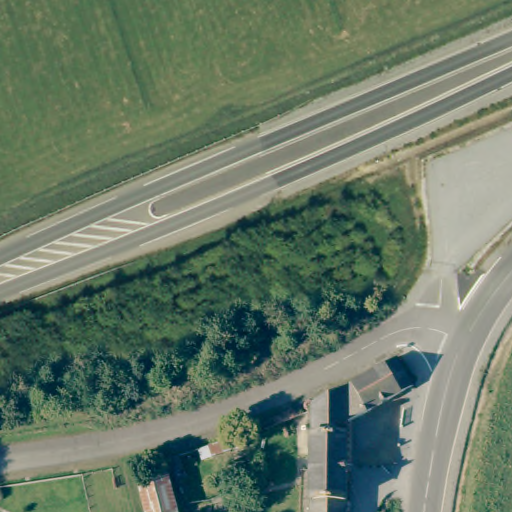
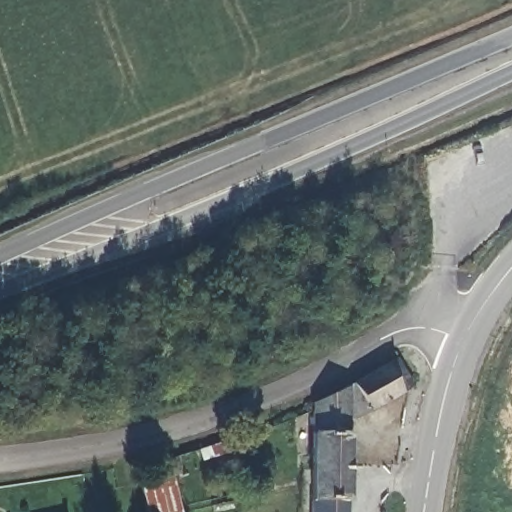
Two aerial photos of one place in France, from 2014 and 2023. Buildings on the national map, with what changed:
unchanged [(320,402),(384,368),(398,362),(405,363),(408,365),(412,371),(414,378),(412,386),(412,389),(354,428),(350,462),(314,458),(320,402)]
unchanged [(247,440),(250,451),(220,459),(217,446),(247,440)]
unchanged [(345,512),(308,512),(314,458),(350,462),(345,512)]
unchanged [(176,512),(145,512),(142,486),(172,482),(176,512)]

